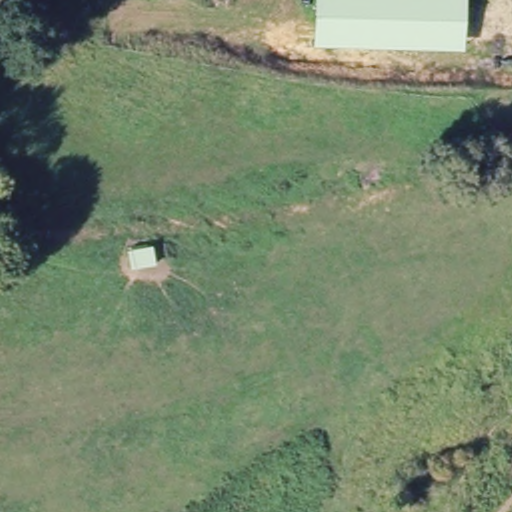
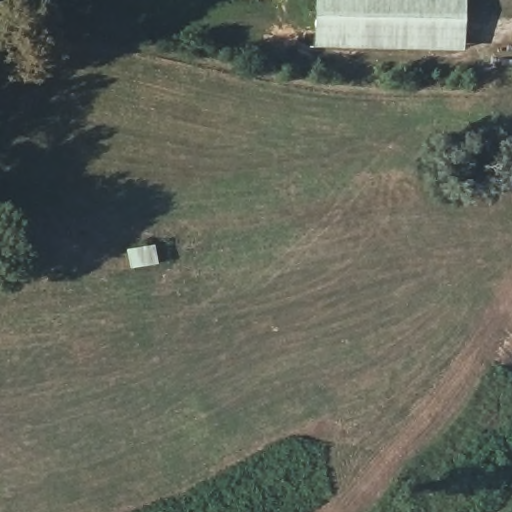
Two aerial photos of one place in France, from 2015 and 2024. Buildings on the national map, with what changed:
unchanged [(462,47),(313,45),(313,0),(463,0),(462,47)]

